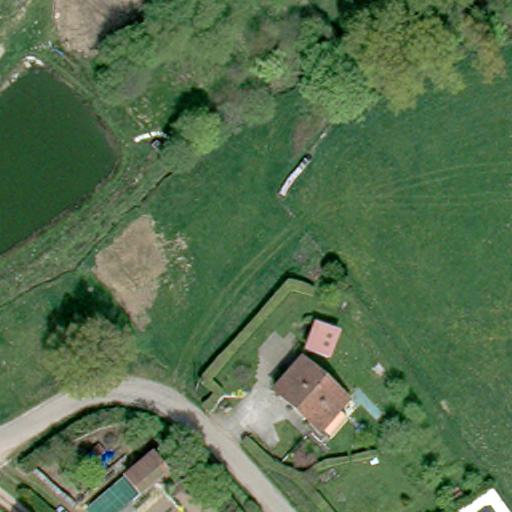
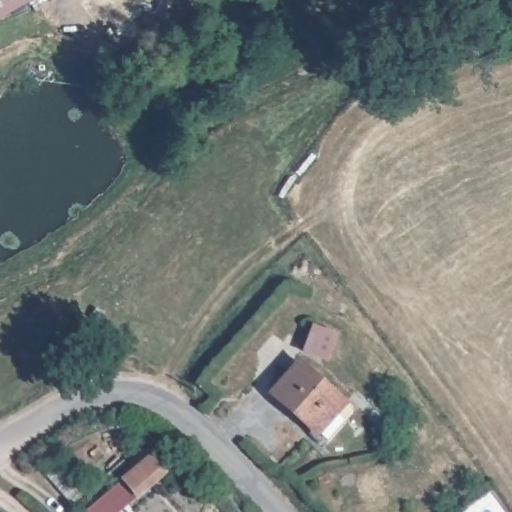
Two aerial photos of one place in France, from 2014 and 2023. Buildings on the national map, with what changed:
new [(0,15),(0,0),(27,0),(0,15)]
unchanged [(320,328),(343,345),(323,370),(302,352),(320,328)]
unchanged [(315,428),(313,430),(277,389),(291,377),(303,366),(339,408),(336,411),(344,421),(332,430),(323,438),(315,428)]
unchanged [(125,512),(90,512),(90,511),(151,456),(167,474),(125,512)]

